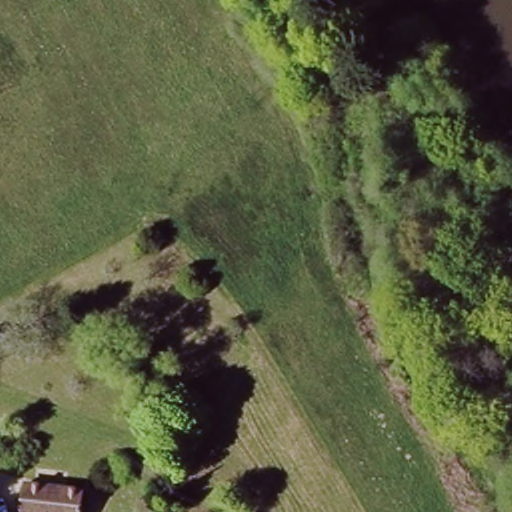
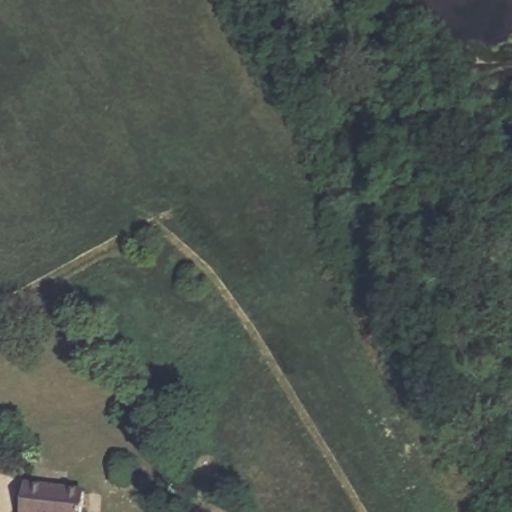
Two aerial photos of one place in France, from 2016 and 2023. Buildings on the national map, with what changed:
unchanged [(88,484),(83,512),(57,512),(29,507),(34,476),(88,484)]

